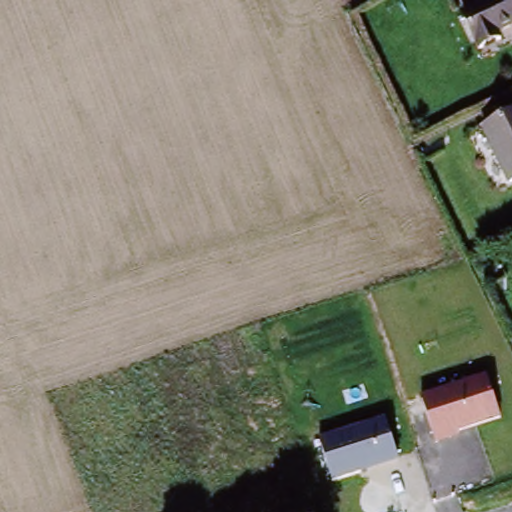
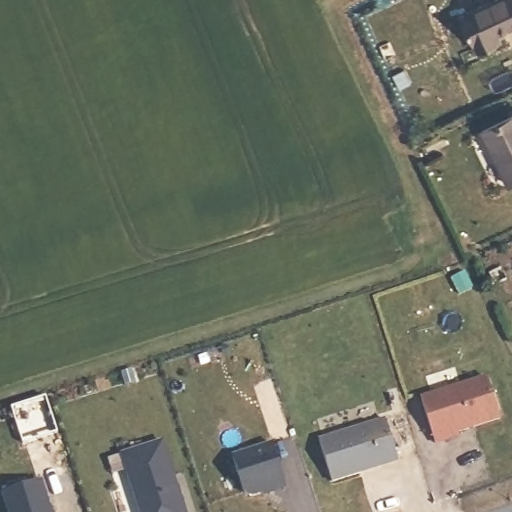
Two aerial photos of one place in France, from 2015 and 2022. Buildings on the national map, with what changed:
unchanged [(512,26),(498,35),(503,45),(480,58),(457,21),(495,0),(512,0),(512,26)]
unchanged [(512,187),(511,187),(485,135),(512,121),(512,187)]
unchanged [(491,378),(502,421),(435,439),(424,397),(491,378)]
unchanged [(385,420),(397,461),(334,479),(322,436),(385,420)]
new [(165,442),(178,476),(177,476),(180,483),(181,483),(192,512),(146,512),(125,456),(165,442)]
new [(277,447),(291,490),(274,495),(273,493),(255,500),(249,496),(237,460),(277,447)]
new [(2,494),(44,480),(54,512),(8,512),(2,494)]

